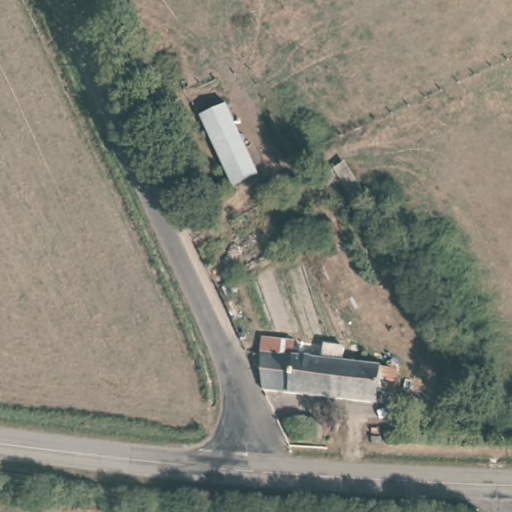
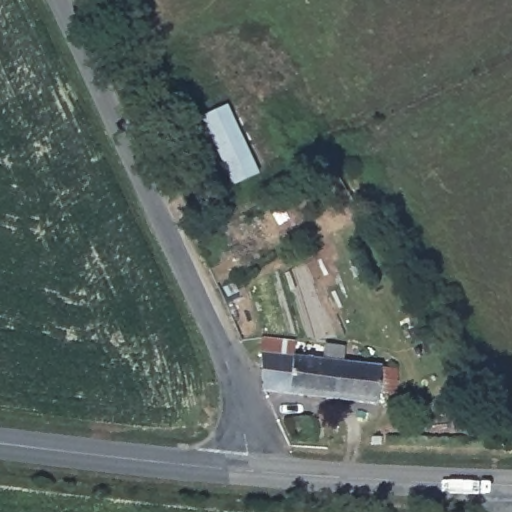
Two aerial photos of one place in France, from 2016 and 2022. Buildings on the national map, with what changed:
unchanged [(257,178),(229,192),(194,122),(224,108),(257,178)]
unchanged [(220,248),(209,253),(202,238),(214,233),(220,248)]
unchanged [(255,341),(287,343),(287,358),(372,368),(374,376),(390,377),(389,398),(370,396),(370,407),(257,394),(256,391),(255,341)]

